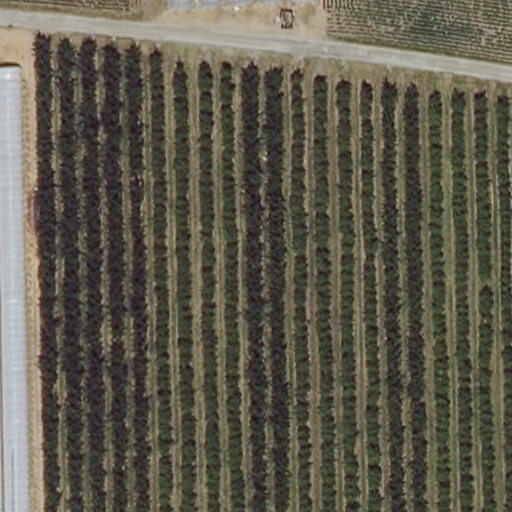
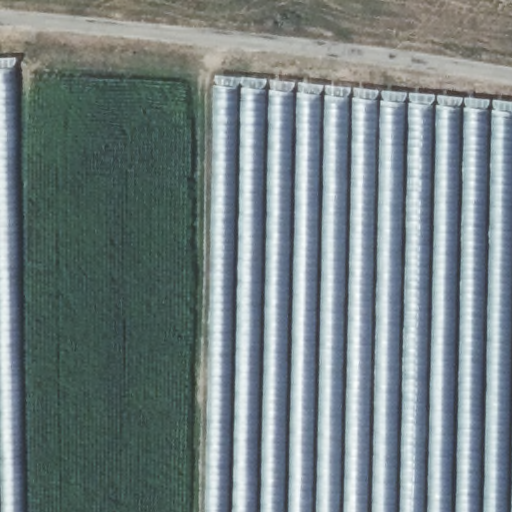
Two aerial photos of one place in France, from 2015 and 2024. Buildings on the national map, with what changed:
unchanged [(16,69),(25,512),(0,512),(0,69),(16,69)]
new [(512,512),(202,512),(211,76),(512,104),(512,512)]

